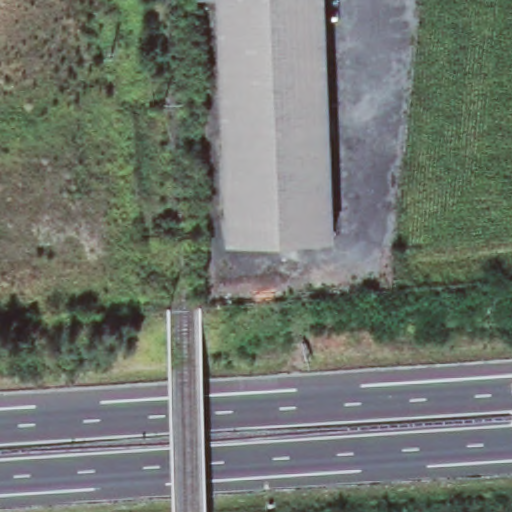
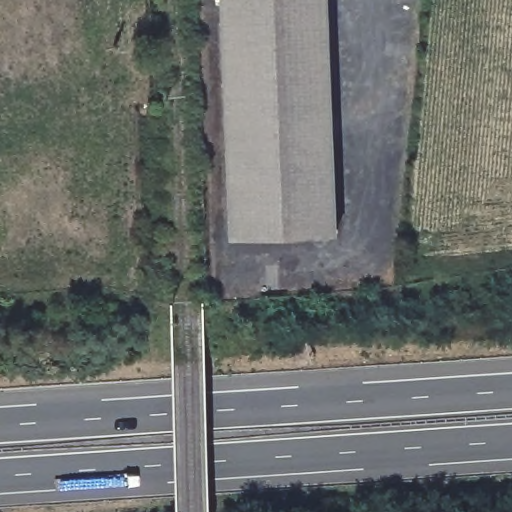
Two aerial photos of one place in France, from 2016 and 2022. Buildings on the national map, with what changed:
unchanged [(230,238),(230,210),(221,0),(331,0),(338,192),(340,232),(230,238)]

